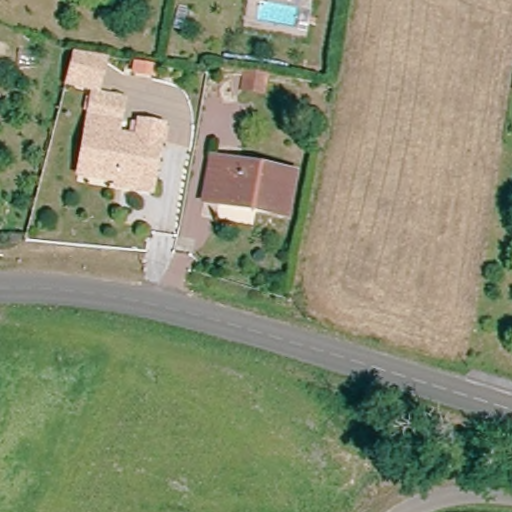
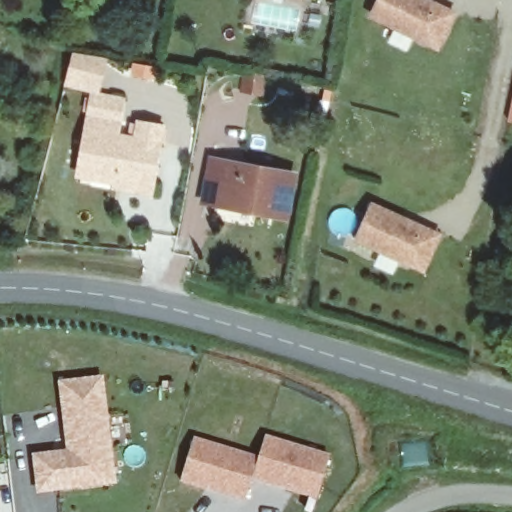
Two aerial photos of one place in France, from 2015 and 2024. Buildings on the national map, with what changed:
new [(434,39),(417,33),(365,13),(371,0),(438,0),(447,3),(434,39)]
unchanged [(75,49),(108,56),(102,86),(66,81),(75,49)]
unchanged [(255,76),(253,90),(236,87),(238,74),(255,76)]
unchanged [(120,186),(121,175),(77,168),(89,109),(123,115),(121,132),(142,135),(145,118),(165,122),(162,138),(156,173),(153,192),(120,186)]
unchanged [(210,189),(215,156),(295,168),(289,213),(221,203),(208,201),(210,189)]
new [(420,262),(403,256),(351,236),(365,200),(417,220),(433,226),(420,262)]
new [(117,485),(36,495),(31,454),(66,450),(57,381),(104,375),(117,485)]
new [(258,459),(265,435),(330,454),(316,501),(251,481),(245,504),(180,484),(195,437),(258,459)]

